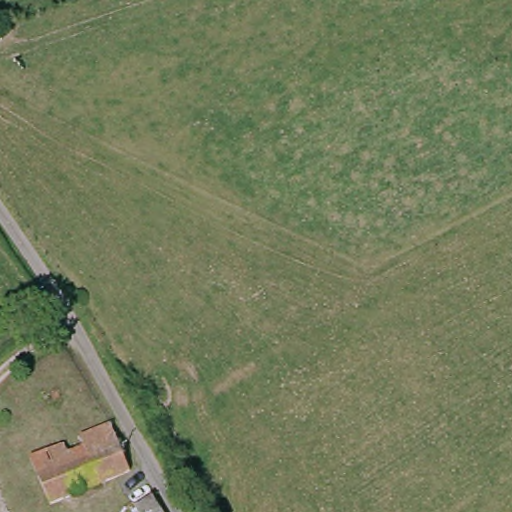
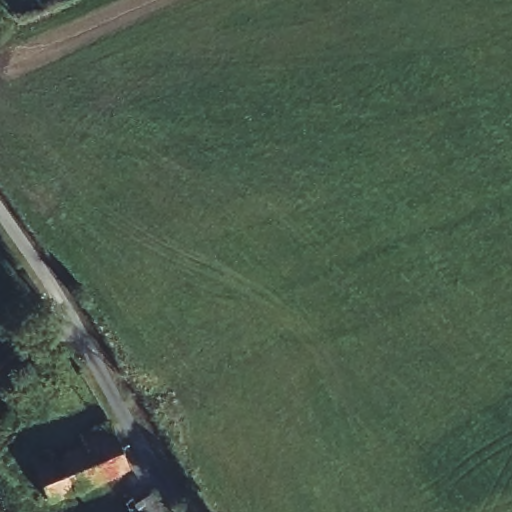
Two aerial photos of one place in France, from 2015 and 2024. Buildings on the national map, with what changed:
unchanged [(50,504),(30,459),(50,451),(80,438),(111,425),(130,471),(50,504)]
unchanged [(139,512),(135,506),(152,495),(163,512),(139,512)]

